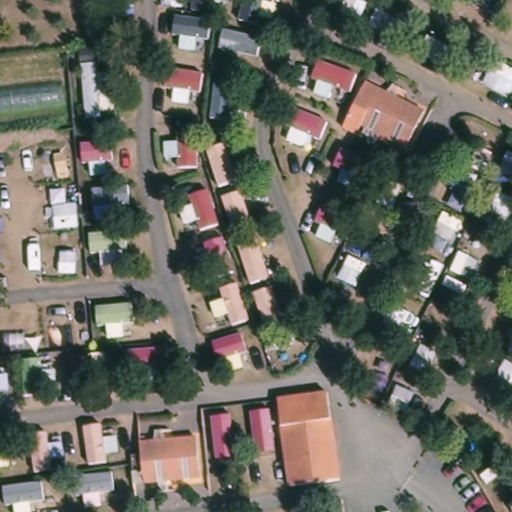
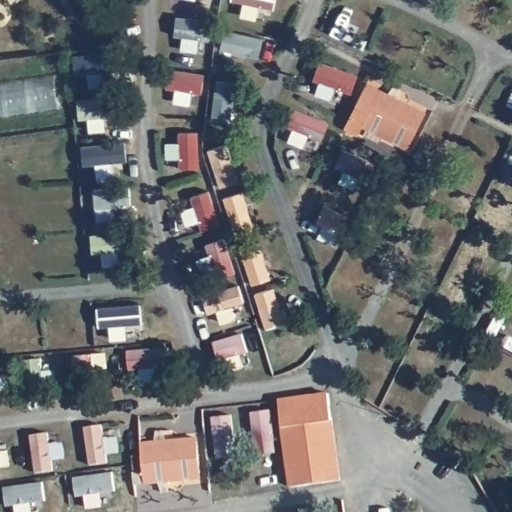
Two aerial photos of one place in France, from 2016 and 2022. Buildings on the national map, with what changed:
unchanged [(422,117),(404,154),(361,131),(355,141),(340,134),(361,87),(422,117)]
unchanged [(291,487),(279,407),(277,400),(330,389),(332,398),(344,479),(291,487)]
unchanged [(195,445),(199,485),(147,490),(142,450),(195,445)]

